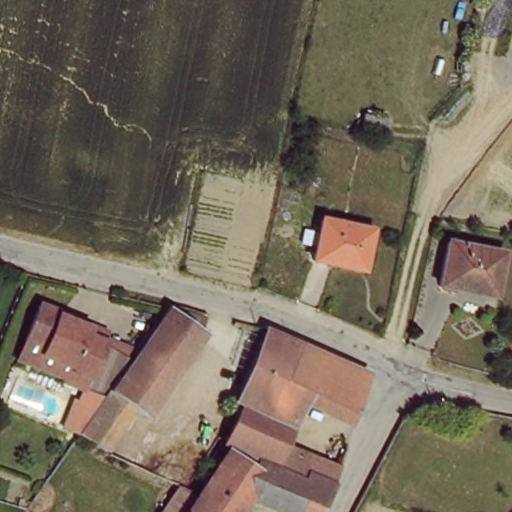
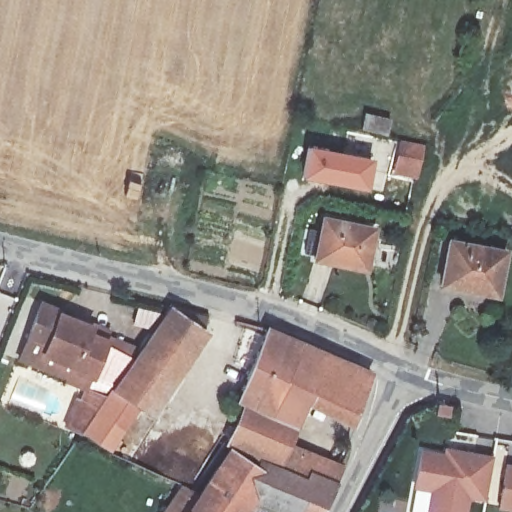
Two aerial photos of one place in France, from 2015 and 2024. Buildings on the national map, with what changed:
new [(425,145),(417,180),(393,175),(400,141),(425,145)]
new [(374,158),(368,190),(301,178),(307,146),(374,158)]
unchanged [(322,218),(372,229),(364,270),(313,259),(322,218)]
unchanged [(508,251),(500,293),(445,282),(454,240),(508,251)]
unchanged [(83,381),(65,375),(65,371),(32,360),(34,351),(15,342),(28,305),(47,313),(46,317),(79,330),(77,338),(96,345),(95,350),(126,361),(107,388),(107,390),(83,381)]
unchanged [(179,380),(152,428),(136,420),(110,450),(86,432),(112,388),(169,310),(208,332),(179,380)]
unchanged [(316,463),(316,466),(315,465),(281,455),(276,453),(228,437),(246,388),(242,386),(265,330),(273,331),(337,356),(375,373),(375,374),(365,410),(313,390),(295,438),(352,467),(350,472),(348,475),(316,463)]
unchanged [(316,463),(348,475),(328,512),(302,512),(250,492),(238,512),(237,512),(202,490),(202,489),(206,484),(231,442),(314,468),(316,466),(316,463)]
new [(445,448),(493,457),(485,502),(467,499),(466,512),(427,512),(431,491),(413,488),(420,450),(442,453),(445,448)]
new [(512,510),(499,509),(505,464),(512,465),(512,510)]
unchanged [(202,490),(237,512),(189,512),(202,489),(202,490)]

